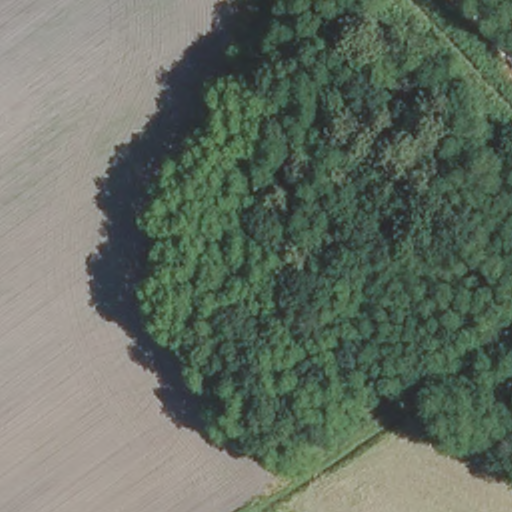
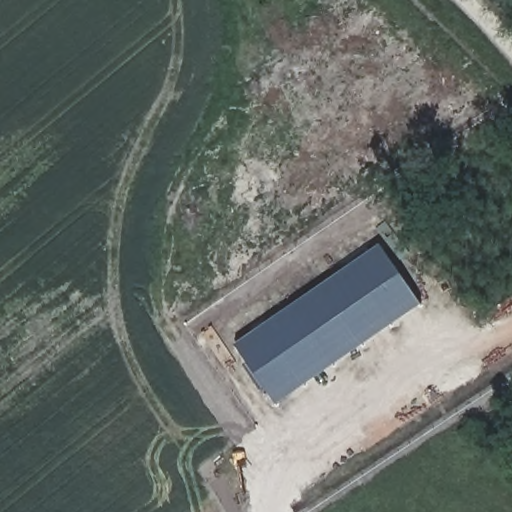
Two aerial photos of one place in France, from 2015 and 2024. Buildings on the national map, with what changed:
new [(277,406),(236,347),(381,248),(422,307),(277,406)]

